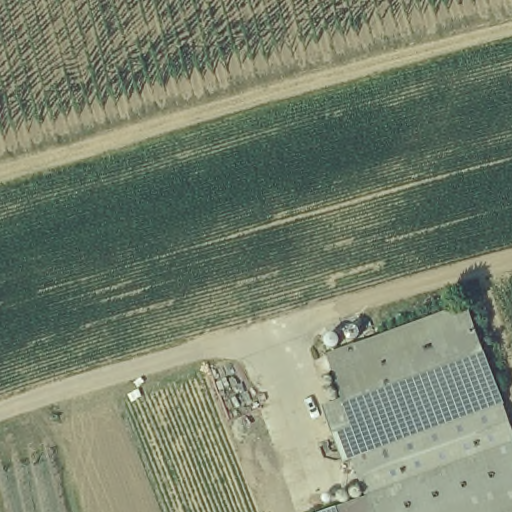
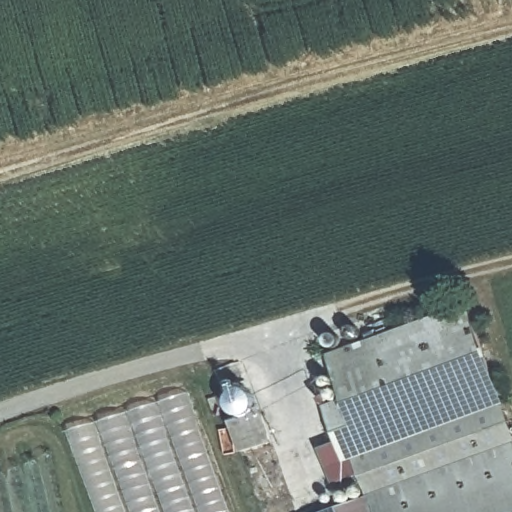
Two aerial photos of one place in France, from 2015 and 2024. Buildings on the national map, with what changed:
unchanged [(501,399),(358,455),(343,459),(326,415),(350,406),(330,352),(465,302),(501,399)]
new [(235,512),(94,512),(63,431),(191,390),(235,512)]
new [(512,446),(368,496),(358,455),(501,399),(512,427),(512,446)]
unchanged [(512,446),(512,512),(327,512),(368,496),(512,446)]

